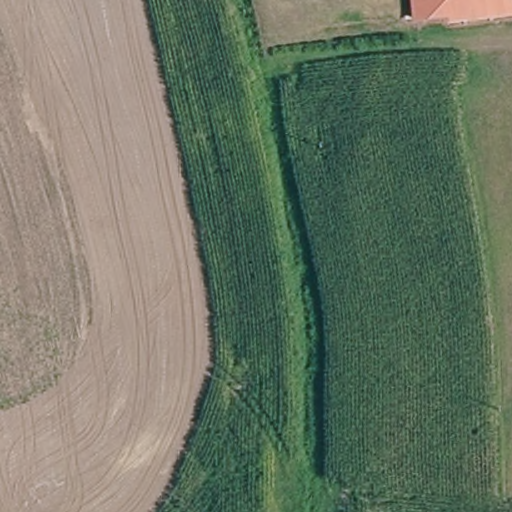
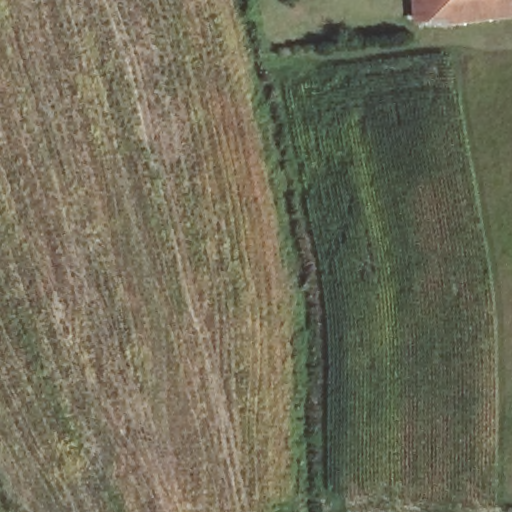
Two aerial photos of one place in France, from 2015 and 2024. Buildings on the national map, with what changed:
unchanged [(512,8),(451,16),(446,15),(431,15),(416,14),(415,0),(512,0),(512,8)]

